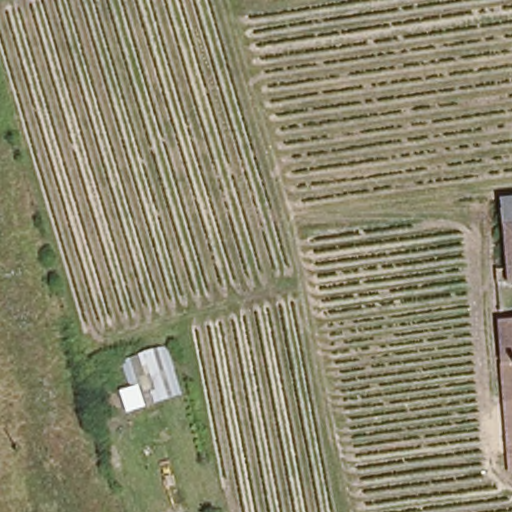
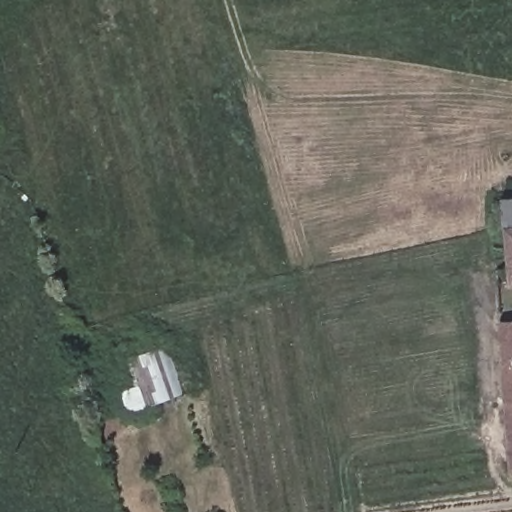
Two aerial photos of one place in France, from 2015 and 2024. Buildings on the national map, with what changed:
unchanged [(494,276),(494,261),(506,260),(504,220),(512,219),(512,275),(494,276)]
unchanged [(512,319),(512,473),(508,474),(500,320),(512,319)]
unchanged [(126,413),(119,391),(129,388),(121,362),(168,347),(182,395),(126,413)]

